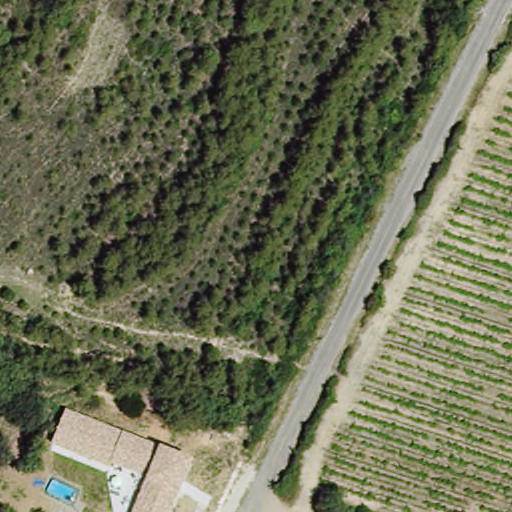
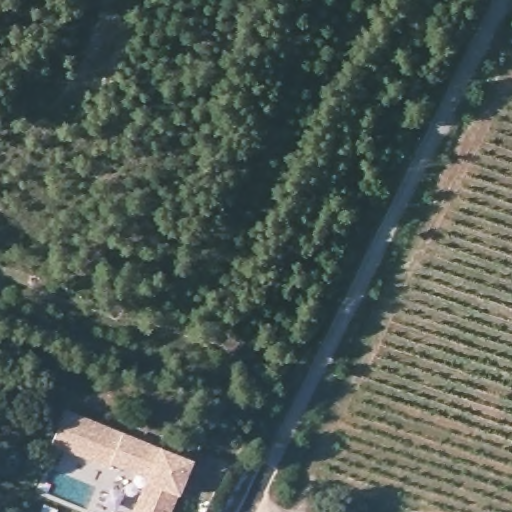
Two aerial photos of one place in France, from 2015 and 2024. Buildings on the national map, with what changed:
unchanged [(112,464),(110,468),(51,444),(64,412),(120,434),(158,448),(191,461),(178,494),(170,512),(132,512),(145,480),(112,464)]

